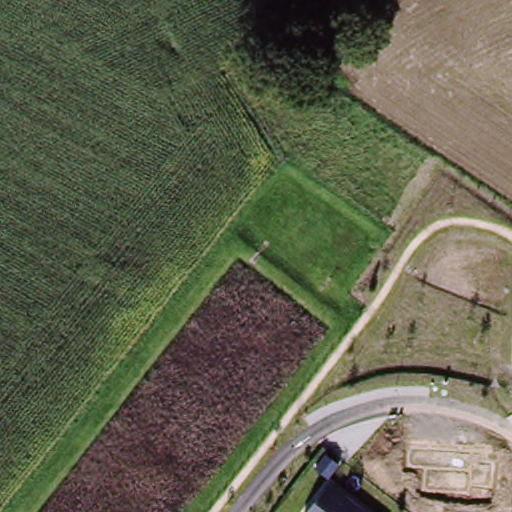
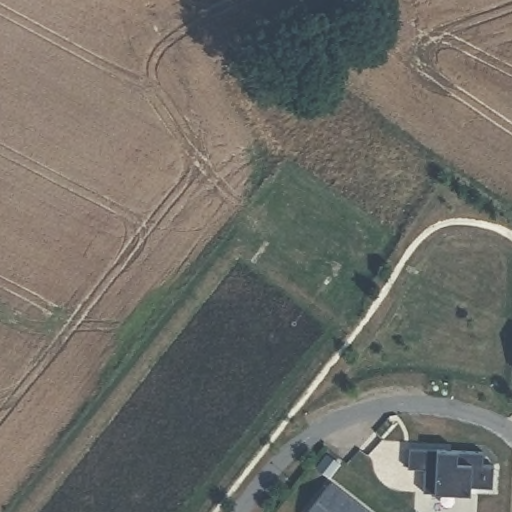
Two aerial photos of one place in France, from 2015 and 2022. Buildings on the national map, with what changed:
new [(470,482),(469,493),(437,491),(424,491),(425,467),(408,467),(409,448),(437,449),(457,450),(482,453),(482,465),(493,465),(492,487),(470,482)]
unchanged [(304,512),(327,482),(365,512),(304,512)]

